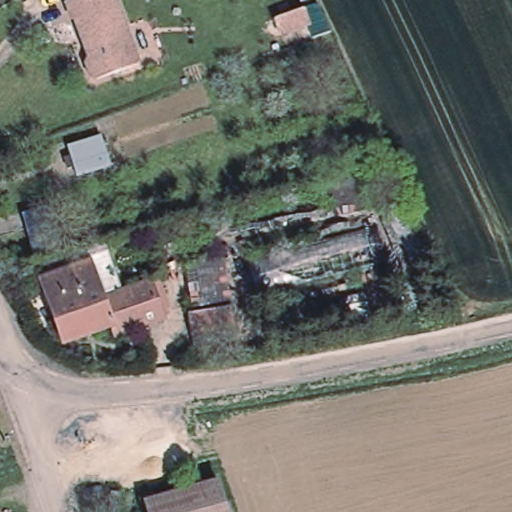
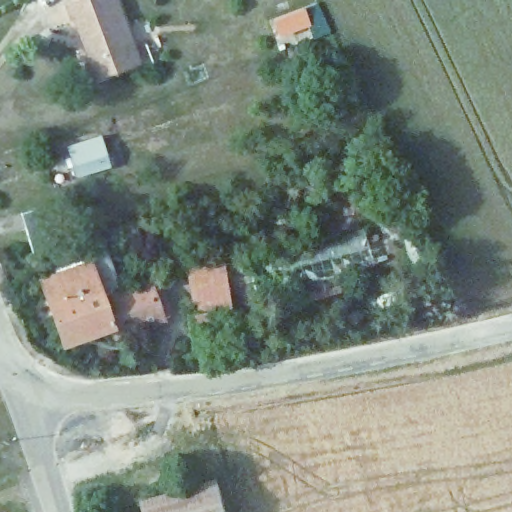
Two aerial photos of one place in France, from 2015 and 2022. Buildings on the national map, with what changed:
unchanged [(81,25),(78,18),(76,19),(70,2),(78,0),(120,0),(122,5),(143,64),(101,79),(95,75),(90,64),(92,57),(85,35),(81,25)]
unchanged [(98,135),(109,162),(75,175),(65,146),(98,135)]
unchanged [(47,201),(63,243),(37,252),(22,212),(47,201)]
unchanged [(258,263),(380,236),(387,270),(262,300),(229,296),(228,260),(258,263)]
unchanged [(90,266),(98,290),(48,307),(40,283),(90,266)]
unchanged [(113,340),(111,332),(63,348),(60,339),(48,307),(98,290),(102,302),(150,285),(162,320),(163,323),(113,340)]
unchanged [(190,349),(187,330),(225,322),(231,321),(232,330),(227,330),(230,342),(190,349)]
unchanged [(225,488),(231,512),(152,512),(152,510),(225,488)]

